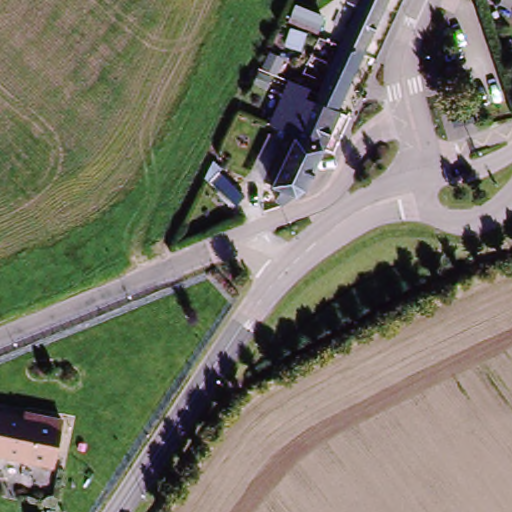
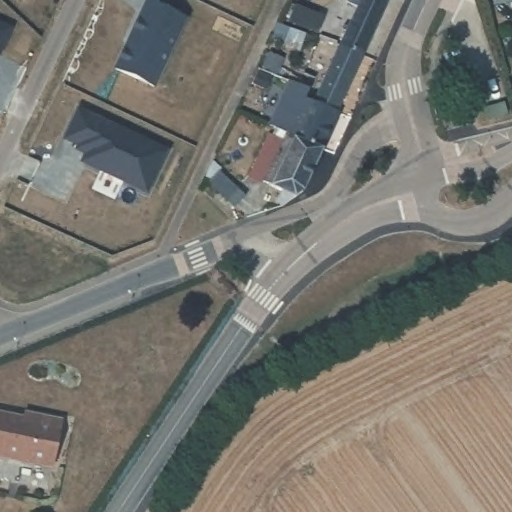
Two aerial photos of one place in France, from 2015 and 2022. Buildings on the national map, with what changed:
unchanged [(363,2),(358,0),(393,0),(386,15),(363,2)]
unchanged [(344,42),(363,2),(386,15),(367,53),(344,42)]
new [(118,72),(143,19),(150,4),(153,5),(189,22),(157,90),(118,72)]
new [(11,30),(0,54),(0,25),(11,30)]
unchanged [(319,93),(344,42),(367,53),(341,104),(319,93)]
new [(265,69),(271,57),(283,62),(277,75),(265,69)]
unchanged [(289,127),(292,122),(283,117),(305,73),(312,77),(311,89),(319,93),(341,104),(349,108),(329,149),(289,127)]
unchanged [(488,110),(503,106),(506,116),(491,120),(488,110)]
new [(88,157),(91,159),(78,152),(80,149),(67,142),(81,112),(169,155),(149,197),(87,167),(84,165),(88,157)]
unchanged [(284,199),(290,185),(266,172),(289,127),(329,149),(305,196),(288,204),(284,199)]
new [(237,209),(211,184),(207,180),(214,166),(222,173),(247,197),(237,209)]
unchanged [(31,425),(33,420),(65,424),(58,470),(0,463),(0,421),(31,425)]

